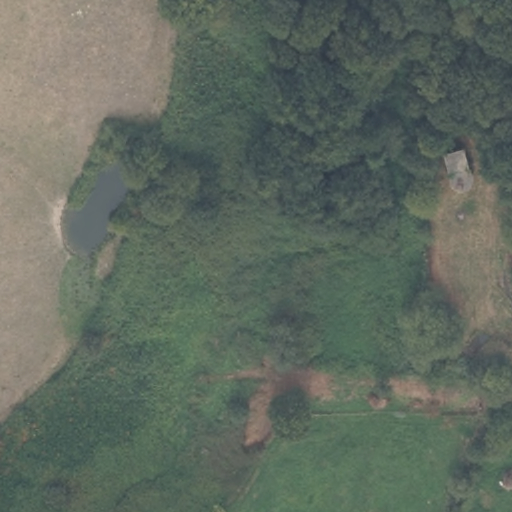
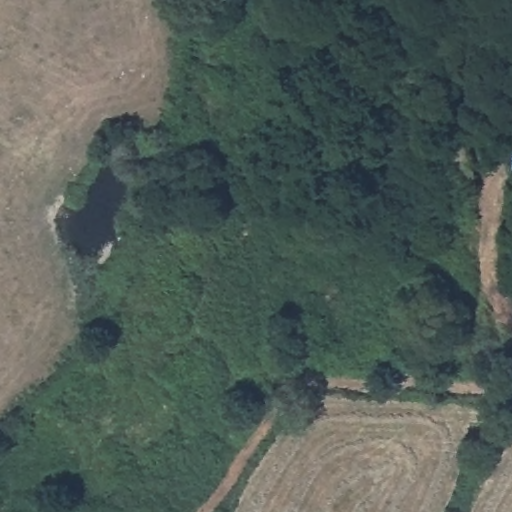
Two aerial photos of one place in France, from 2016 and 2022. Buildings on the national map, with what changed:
unchanged [(466,143),(470,168),(471,175),(470,180),(467,184),(463,185),(458,185),(452,181),(449,171),(443,149),(466,143)]

